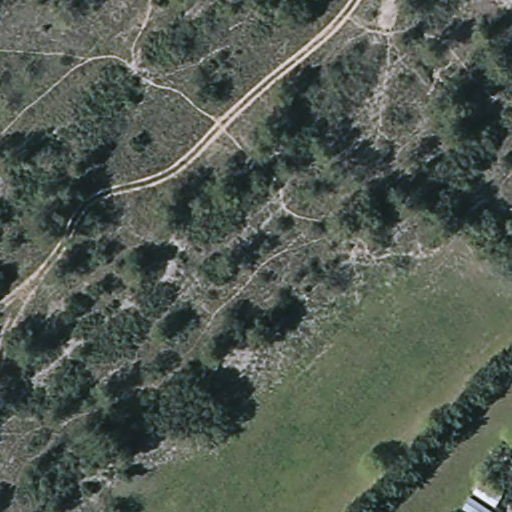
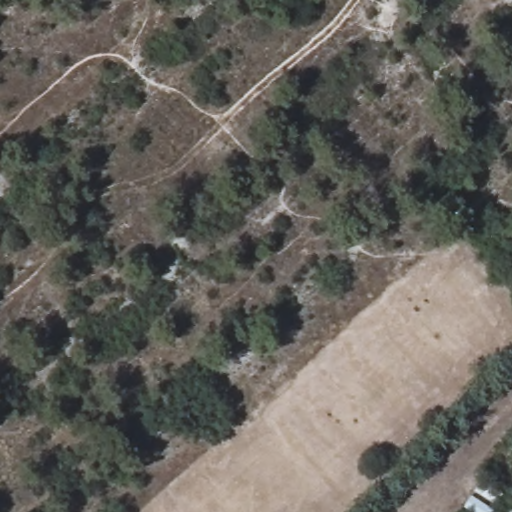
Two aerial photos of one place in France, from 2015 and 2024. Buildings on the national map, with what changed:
unchanged [(490,512),(463,512),(460,510),(468,493),(493,507),(490,512)]

